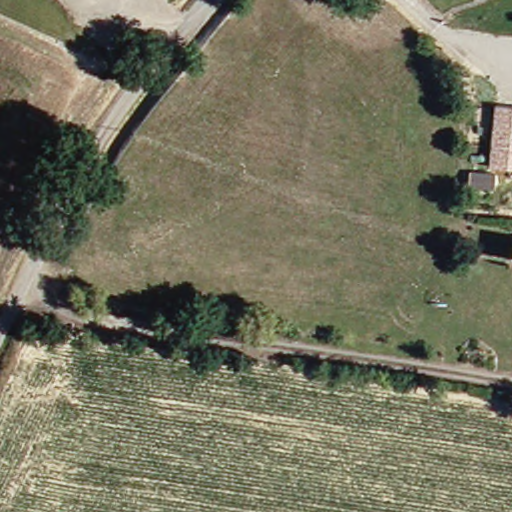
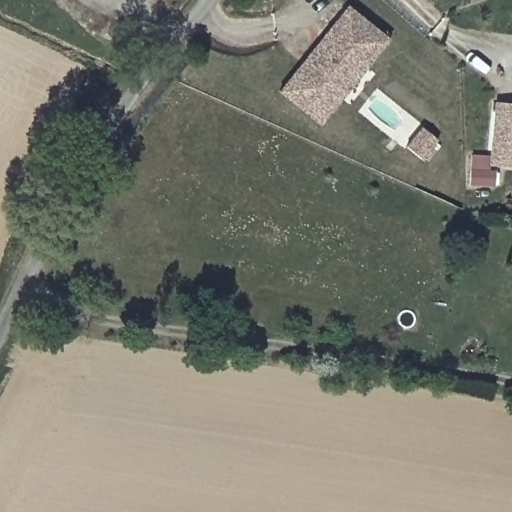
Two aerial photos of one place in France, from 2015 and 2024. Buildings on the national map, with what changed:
new [(323,128),(280,94),(317,49),(323,41),(351,6),(394,41),(358,85),(345,100),(323,128)]
unchanged [(496,103),(512,105),(512,168),(490,165),(496,103)]
new [(433,134),(420,154),(409,148),(423,127),(433,134)]
new [(440,138),(426,160),(420,155),(433,134),(440,138)]

